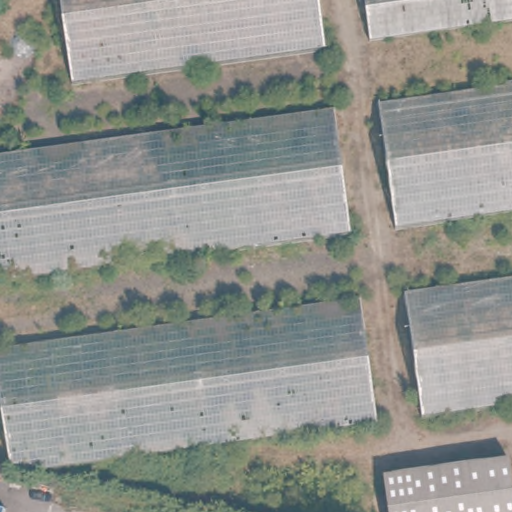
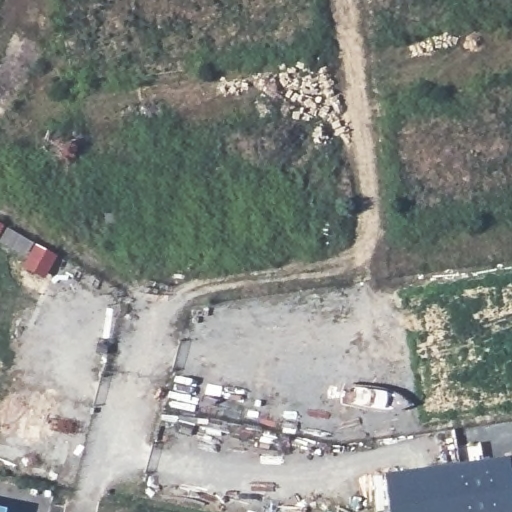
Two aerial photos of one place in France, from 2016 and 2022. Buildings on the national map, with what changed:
demolished [(69,77),(58,0),(321,0),(327,42),(69,77)]
demolished [(361,0),(512,0),(512,17),(367,39),(361,0)]
demolished [(398,222),(381,101),(512,82),(512,206),(398,222)]
demolished [(0,274),(0,154),(332,104),(352,227),(0,274)]
demolished [(425,412),(406,295),(511,278),(512,278),(512,400),(425,412)]
demolished [(12,472),(0,386),(0,347),(357,297),(380,416),(12,472)]
unchanged [(512,468),(512,512),(387,512),(380,471),(510,455),(512,468)]
unchanged [(0,510),(4,511),(3,512),(0,512),(0,510)]

